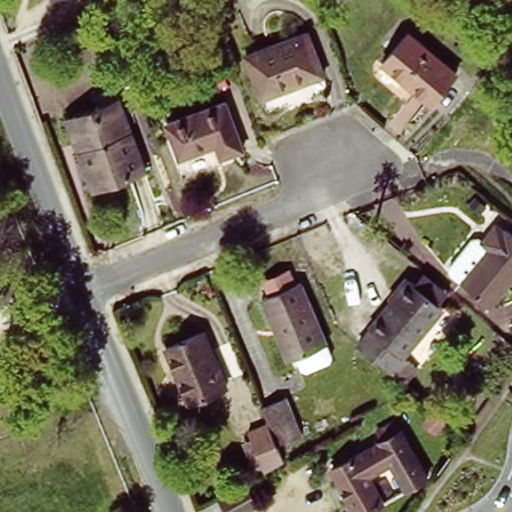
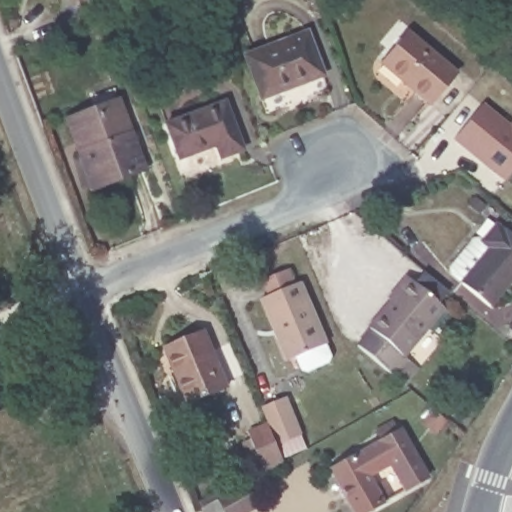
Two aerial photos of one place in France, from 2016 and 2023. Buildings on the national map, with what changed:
unchanged [(390,59),(414,29),(460,68),(435,98),(421,86),(390,59)]
unchanged [(262,95),(246,53),(307,31),(324,72),(262,95)]
unchanged [(97,186),(83,150),(70,116),(79,113),(102,104),(122,96),(127,108),(149,166),(97,186)]
unchanged [(222,154),(215,139),(180,153),(167,120),(225,98),(245,145),(222,154)]
new [(504,180),(453,140),(482,103),(510,125),(512,122),(512,170),(504,180)]
unchanged [(465,278),(492,244),(485,238),(497,223),(505,229),(510,225),(512,226),(512,278),(493,302),(465,278)]
unchanged [(307,283),(334,344),(294,361),(267,299),(307,283)]
unchanged [(389,363),(357,338),(382,310),(377,305),(395,285),(401,290),(427,314),(389,363)]
unchanged [(205,327),(230,382),(193,398),(170,341),(205,327)]
unchanged [(287,389),(301,425),(276,437),(267,414),(260,399),(287,389)]
unchanged [(260,464),(242,424),(267,414),(276,437),(282,451),(260,464)]
unchanged [(402,497),(398,491),(404,489),(381,447),(407,433),(430,481),(402,497)]
unchanged [(380,488),(387,485),(395,501),(374,512),(355,512),(332,471),(364,456),(380,488)]
unchanged [(215,489),(222,504),(207,511),(199,498),(215,489)]

